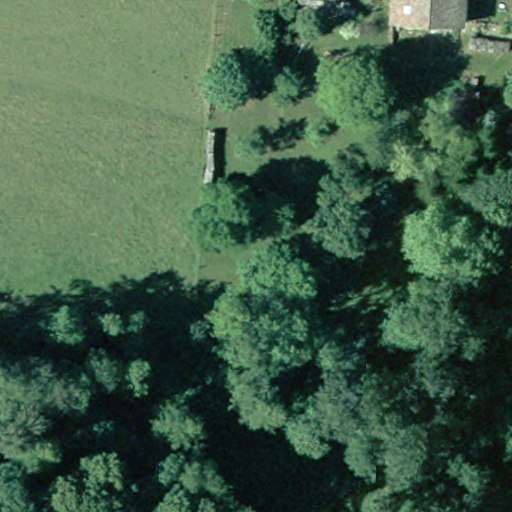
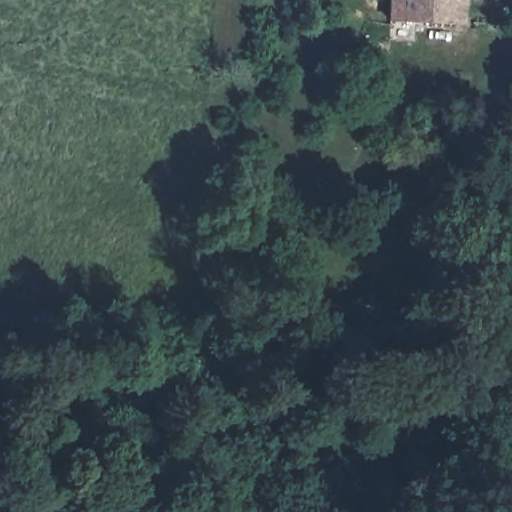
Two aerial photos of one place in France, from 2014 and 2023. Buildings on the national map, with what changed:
unchanged [(461,24),(417,21),(389,19),(391,0),(462,0),(461,24)]

